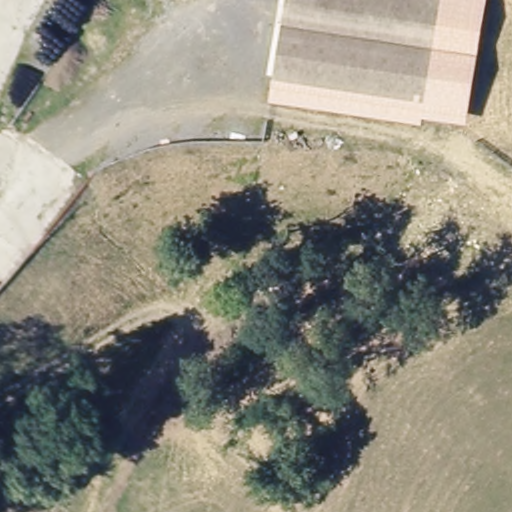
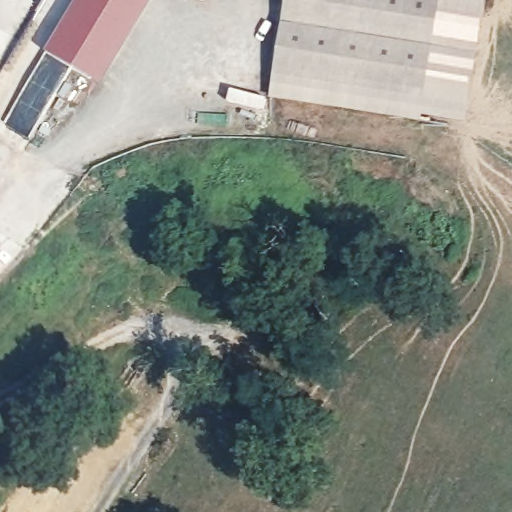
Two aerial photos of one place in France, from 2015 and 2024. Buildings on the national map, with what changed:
new [(103,86),(45,53),(76,0),(153,0),(103,86)]
unchanged [(417,100),(424,101),(440,0),(487,0),(466,125),(423,117),(422,124),(269,99),(273,76),(417,100)]
unchanged [(285,0),(440,0),(424,101),(273,76),(285,0)]

